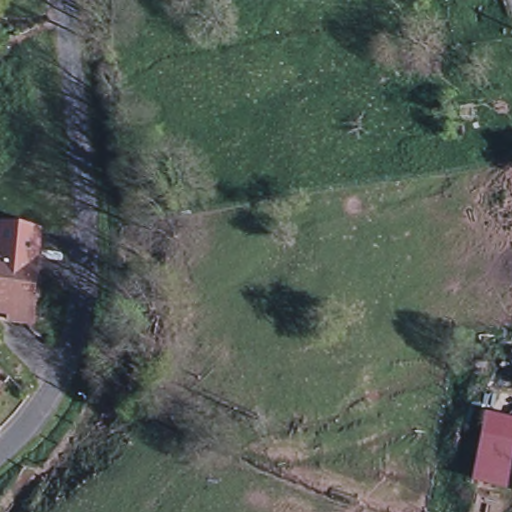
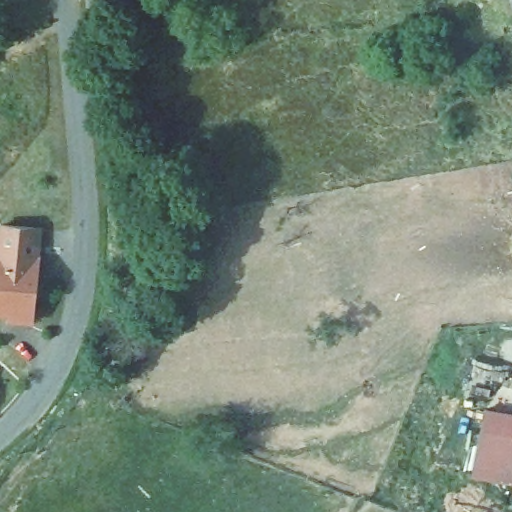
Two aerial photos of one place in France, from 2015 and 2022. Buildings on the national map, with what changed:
unchanged [(34,322),(5,321),(5,312),(0,312),(0,244),(37,247),(34,322)]
unchanged [(470,474),(485,408),(512,412),(512,483),(470,474)]

